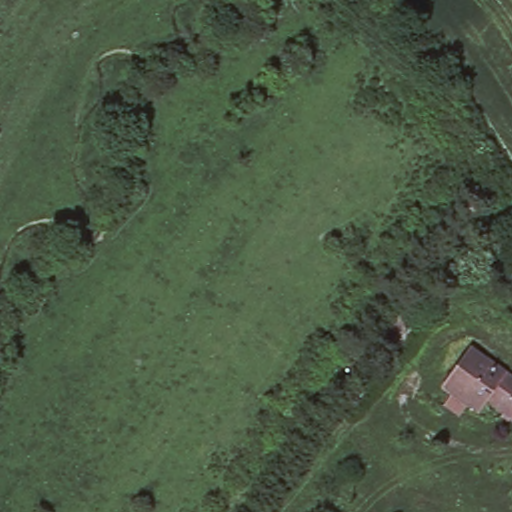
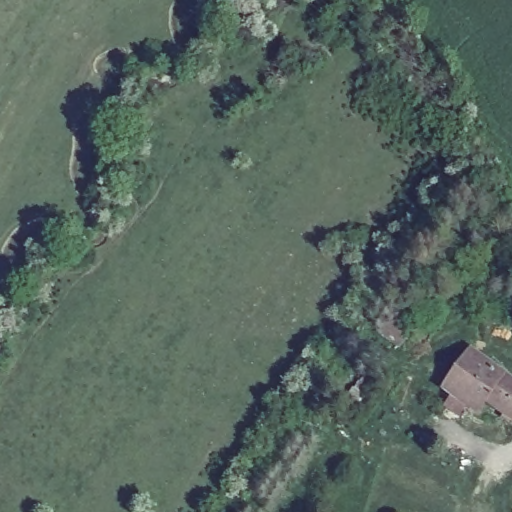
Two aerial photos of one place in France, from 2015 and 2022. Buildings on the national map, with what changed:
unchanged [(472,415),(435,389),(464,344),(512,378),(512,419),(507,425),(487,407),(472,415)]

